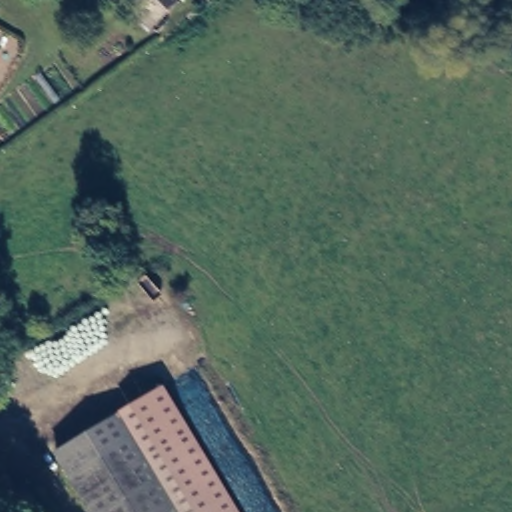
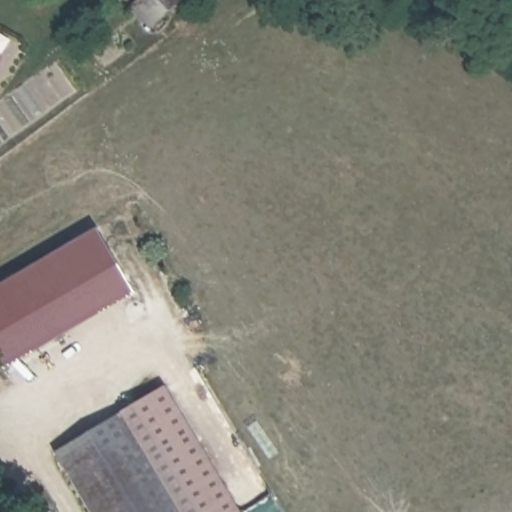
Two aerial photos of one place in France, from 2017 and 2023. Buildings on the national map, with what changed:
unchanged [(2,28),(0,31),(0,27),(2,28)]
unchanged [(8,61),(0,75),(0,56),(8,61)]
new [(4,370),(0,363),(0,284),(96,229),(134,294),(4,370)]
unchanged [(93,512),(61,456),(165,396),(233,512),(93,512)]

